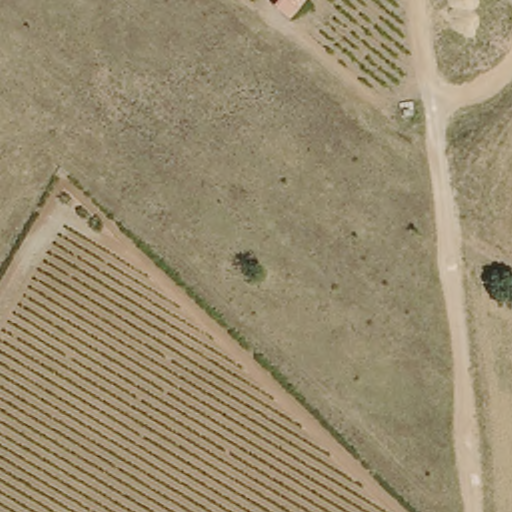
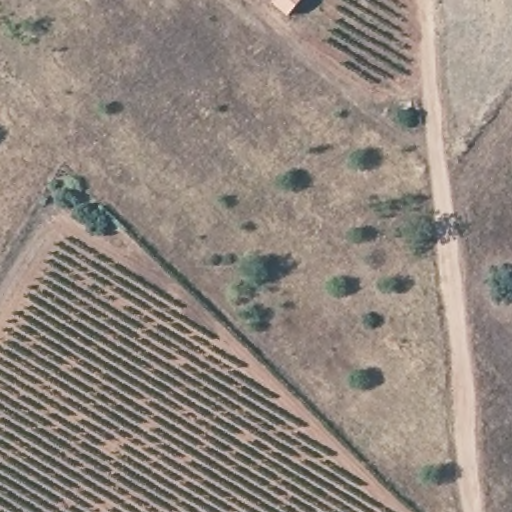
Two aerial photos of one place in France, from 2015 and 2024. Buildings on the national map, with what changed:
unchanged [(303,0),(287,18),(270,3),(272,0),(303,0)]

